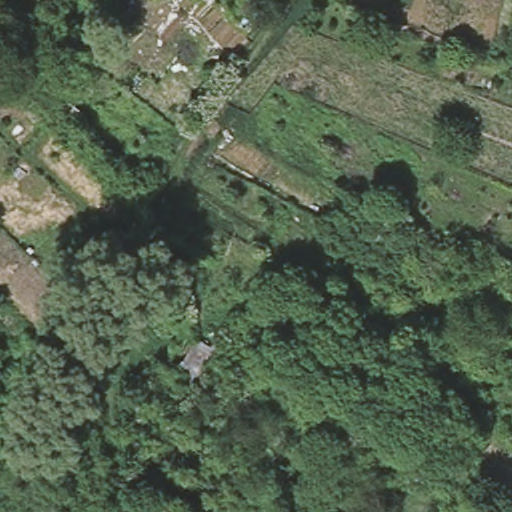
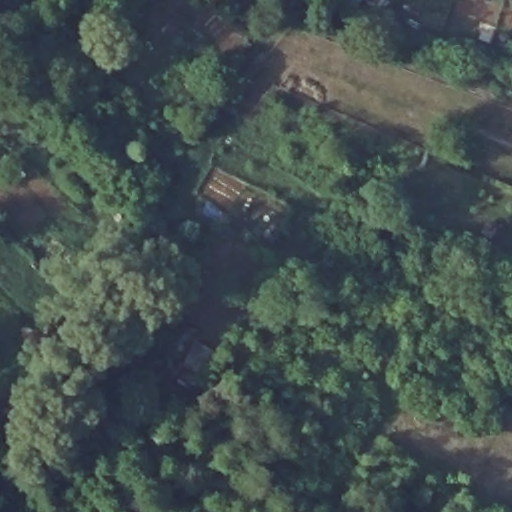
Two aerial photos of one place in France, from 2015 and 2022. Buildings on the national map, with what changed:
unchanged [(213,337),(196,377),(177,366),(188,332),(213,337)]

